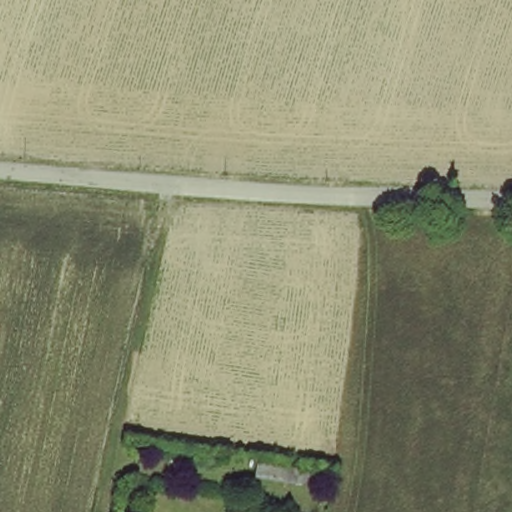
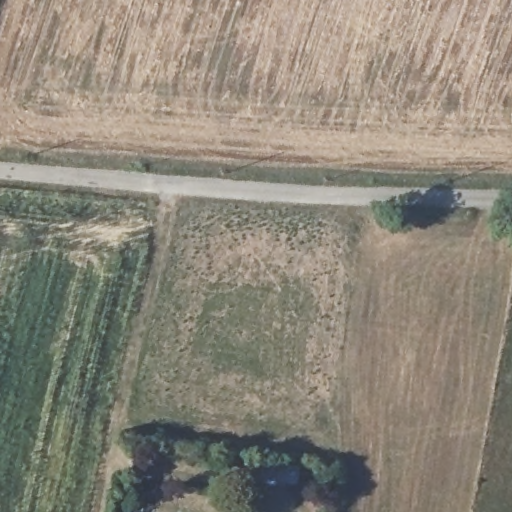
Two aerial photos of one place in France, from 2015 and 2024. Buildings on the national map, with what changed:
unchanged [(259,460),(302,467),(300,481),(258,477),(259,460)]

